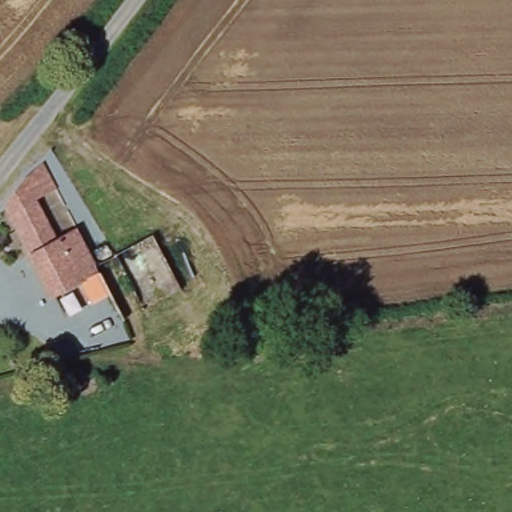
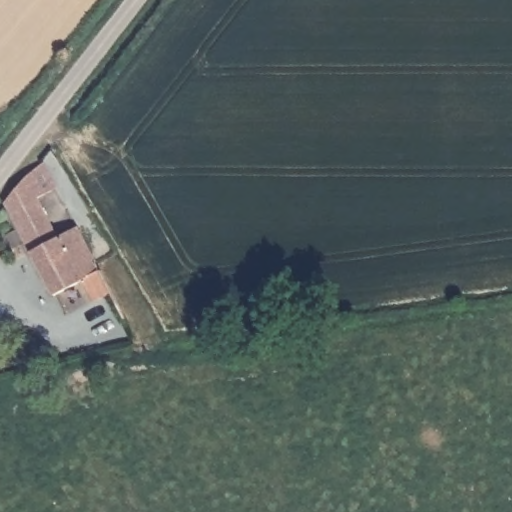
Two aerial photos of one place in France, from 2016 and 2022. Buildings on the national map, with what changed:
unchanged [(30,271),(39,265),(6,201),(20,174),(39,157),(41,155),(65,199),(44,211),(54,232),(75,221),(93,256),(109,287),(87,299),(79,282),(55,296),(45,301),(30,271)]

